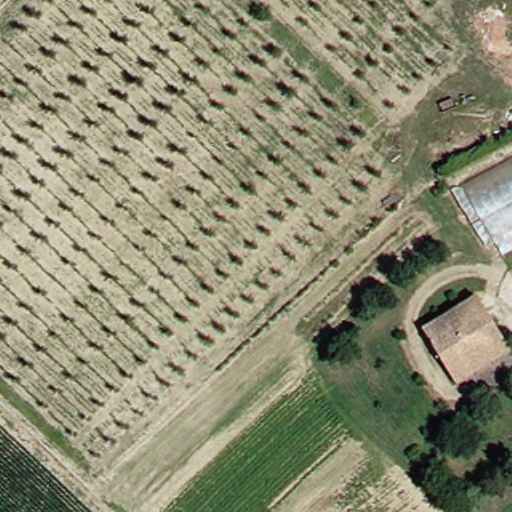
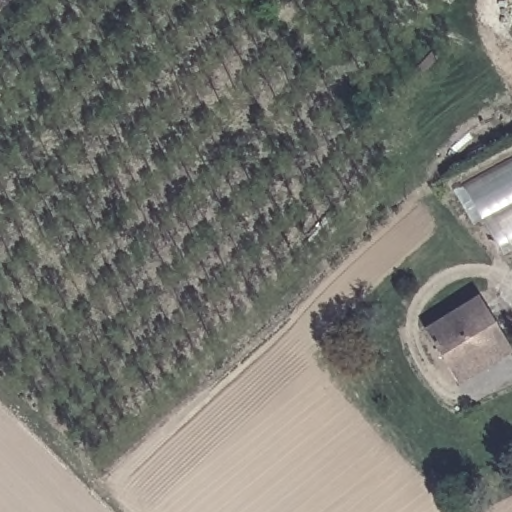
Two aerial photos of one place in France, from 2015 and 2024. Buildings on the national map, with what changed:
unchanged [(512,247),(497,255),(464,184),(512,159),(512,247)]
unchanged [(457,370),(434,330),(485,299),(509,338),(512,343),(512,353),(464,382),(457,370)]

